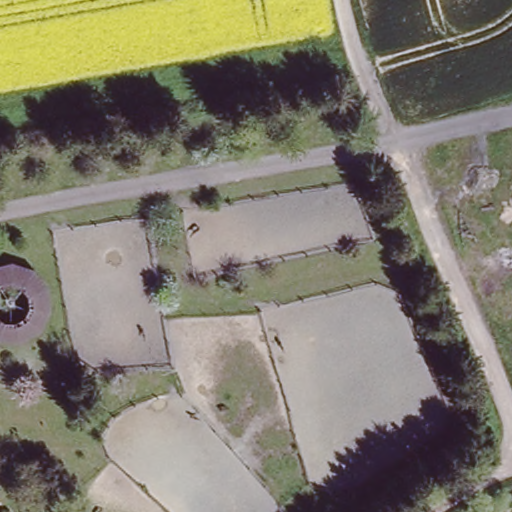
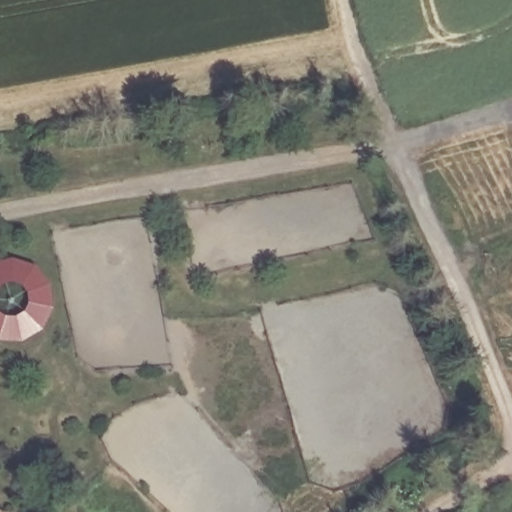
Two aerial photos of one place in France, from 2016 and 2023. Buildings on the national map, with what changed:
unchanged [(50,286),(52,309),(41,332),(19,342),(0,341),(0,315),(5,318),(17,317),(24,312),(29,304),(28,297),(25,291),(20,287),(13,283),(6,283),(0,286),(0,262),(13,259),(34,267),(50,286)]

